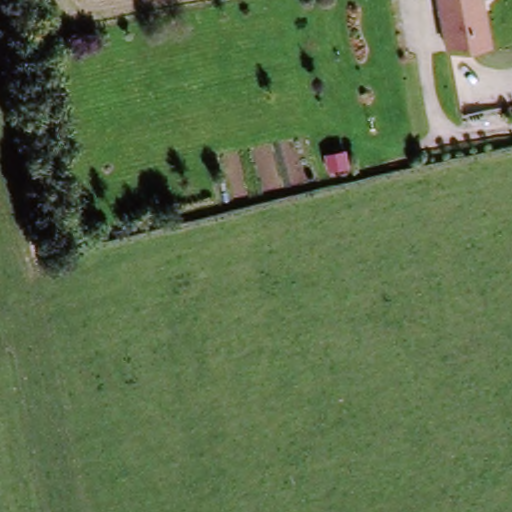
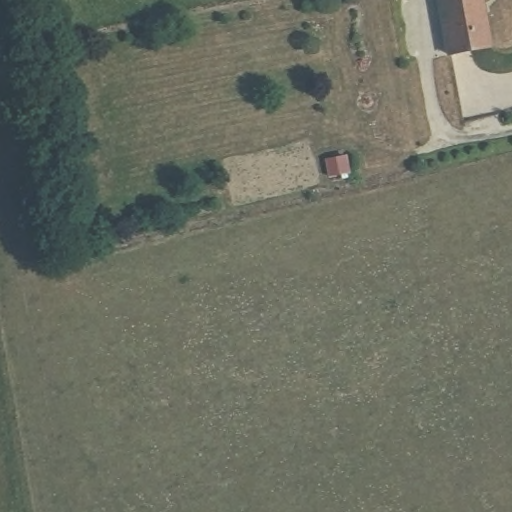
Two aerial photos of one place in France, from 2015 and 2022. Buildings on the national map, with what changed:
unchanged [(443,0),(484,0),(492,42),(453,50),(443,0)]

